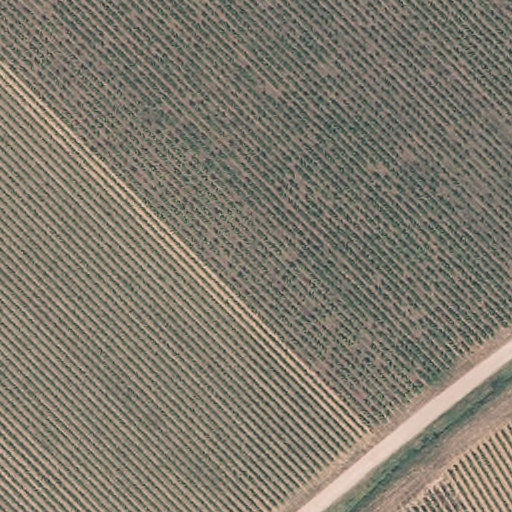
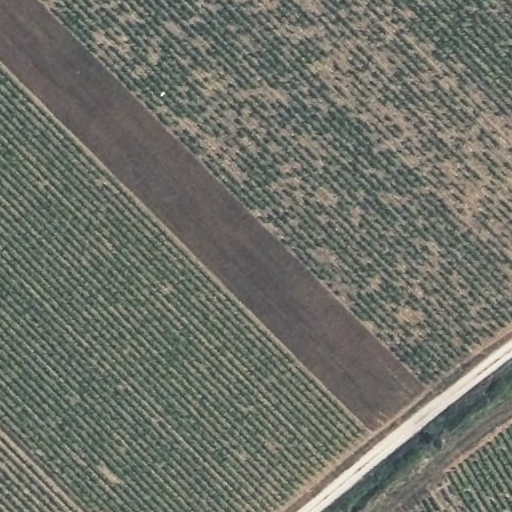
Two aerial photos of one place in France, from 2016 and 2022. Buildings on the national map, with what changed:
[]

